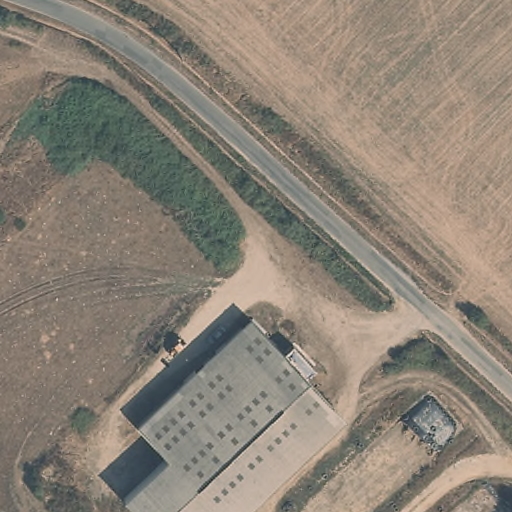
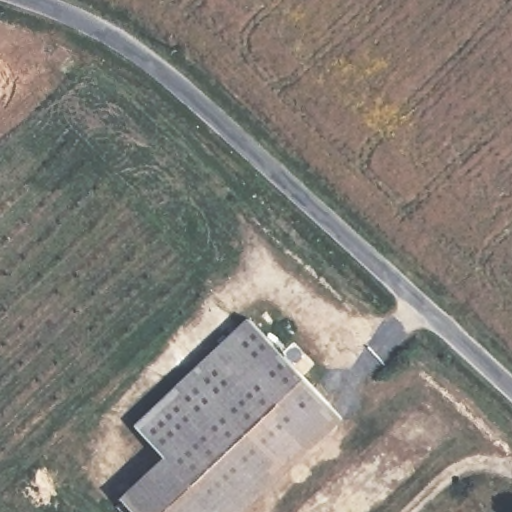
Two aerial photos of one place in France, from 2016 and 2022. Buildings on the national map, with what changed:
unchanged [(219,512),(141,512),(126,497),(170,455),(141,423),(253,316),(335,402),(219,512)]

